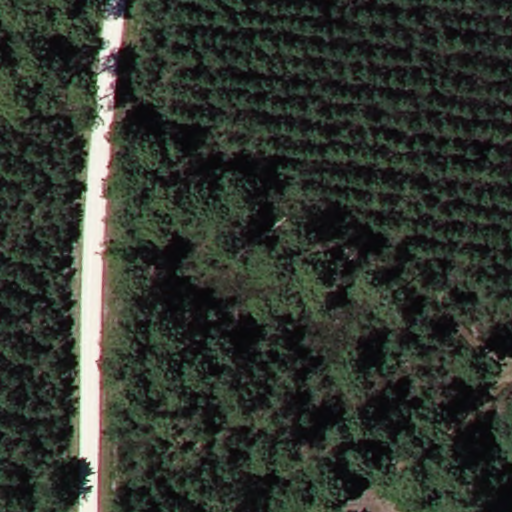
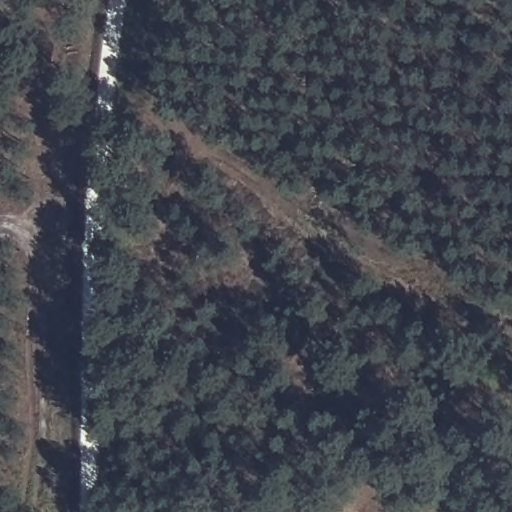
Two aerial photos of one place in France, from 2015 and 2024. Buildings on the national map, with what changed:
[]

